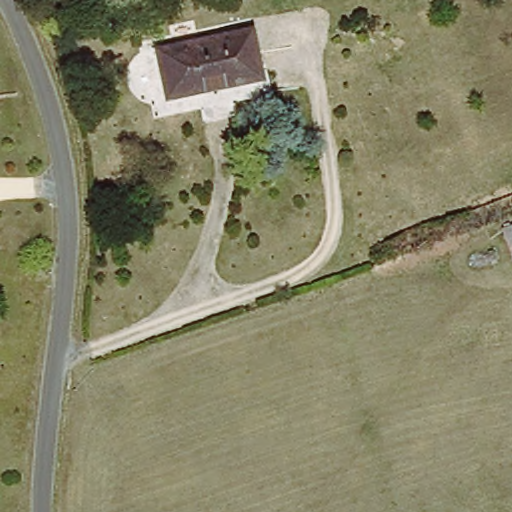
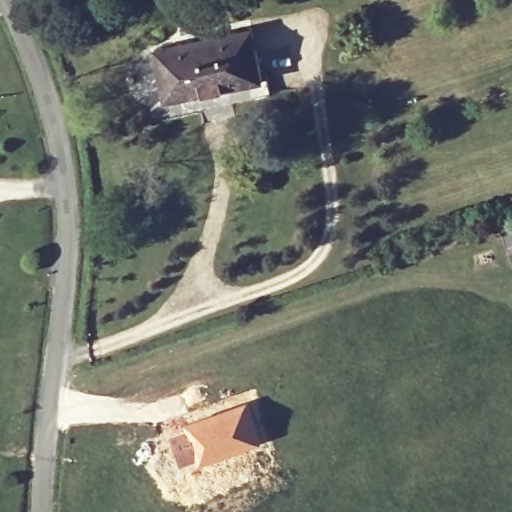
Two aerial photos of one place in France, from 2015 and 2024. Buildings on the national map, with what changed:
unchanged [(268,73),(271,89),(166,108),(155,41),(251,24),(260,75),(268,73)]
new [(500,229),(512,225),(512,263),(500,229)]
new [(246,400),(262,442),(198,464),(185,424),(246,400)]

